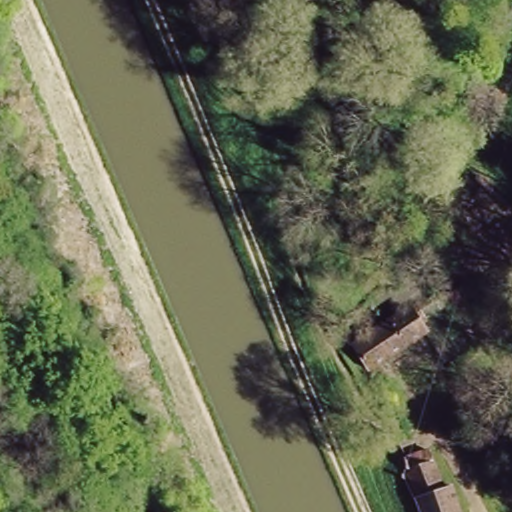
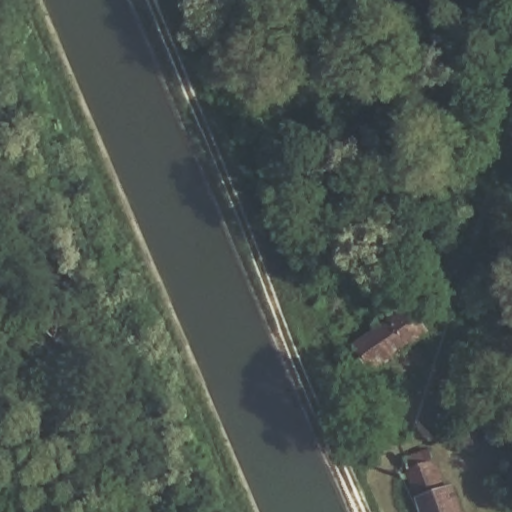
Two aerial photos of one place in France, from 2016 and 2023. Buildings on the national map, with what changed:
unchanged [(353,342),(410,305),(426,330),(368,367),(353,342)]
unchanged [(429,455),(441,490),(448,487),(457,512),(419,512),(403,463),(429,455)]

